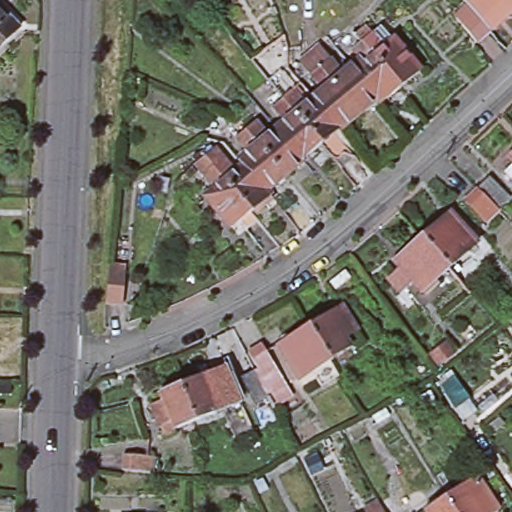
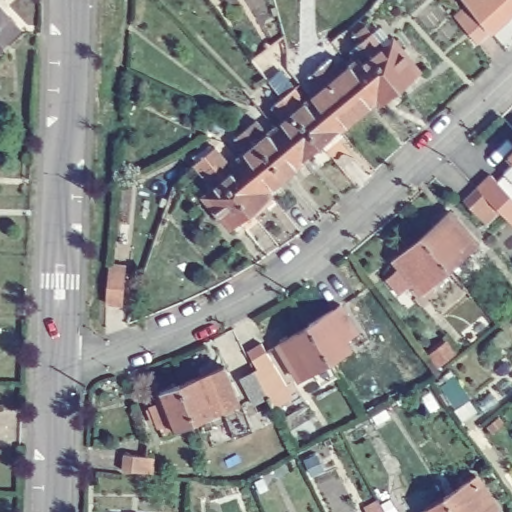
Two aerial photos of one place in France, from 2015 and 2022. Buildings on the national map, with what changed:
unchanged [(458,8),(469,0),(512,0),(512,6),(492,22),(479,33),(458,8)]
unchanged [(0,39),(0,5),(17,24),(0,39)]
unchanged [(370,35),(382,49),(392,42),(418,74),(397,91),(360,43),(370,35)]
unchanged [(361,66),(349,51),(360,43),(397,91),(380,106),(375,100),(353,73),(361,66)]
unchanged [(375,100),(337,131),(311,98),(320,91),(307,76),(327,60),(340,74),(348,69),(352,74),(353,73),(375,100)]
unchanged [(290,90),(301,105),(311,98),(337,131),(318,147),(278,98),(290,90)]
unchanged [(281,120),(270,106),(278,98),(318,147),(300,162),(272,128),(281,120)]
unchanged [(300,162),(281,178),(242,128),(252,120),(265,134),(272,128),(300,162)]
unchanged [(281,178),(264,191),(268,197),(267,197),(263,192),(240,165),(235,159),(244,152),(232,136),(242,128),(281,178)]
unchanged [(507,154),(512,149),(512,159),(507,154)]
unchanged [(238,230),(234,225),(229,229),(202,196),(212,189),(200,174),(192,164),(202,156),(210,165),(220,157),(232,172),(240,165),(263,192),(267,197),(248,213),(256,222),(244,231),(241,228),(238,230)]
unchanged [(505,169),(512,162),(512,176),(505,169)]
unchanged [(464,201),(476,190),(487,178),(509,200),(497,210),(496,211),(495,210),(485,221),(464,201)]
unchanged [(451,268),(423,235),(448,213),(470,237),(477,245),(466,255),(451,268)]
unchanged [(432,284),(425,277),(415,286),(393,261),(423,235),(451,268),(432,284)]
unchanged [(125,258),(123,297),(106,295),(110,256),(125,258)]
unchanged [(320,381),(311,367),(310,368),(298,375),(292,366),(276,339),(307,320),(338,301),(355,328),(343,335),(348,345),(330,356),(339,370),(320,381)]
unchanged [(270,406),(265,396),(263,393),(249,400),(235,375),(250,368),(250,369),(253,368),(245,353),(260,344),(284,387),(289,395),(270,406)]
unchanged [(206,367),(221,406),(178,422),(163,383),(206,367)]
unchanged [(158,429),(155,422),(142,426),(134,404),(146,400),(142,391),(163,383),(178,422),(158,429)]
unchanged [(125,450),(156,453),(155,469),(125,466),(125,450)]
unchanged [(474,479),(491,505),(481,512),(451,512),(437,490),(455,479),(468,471),(474,479)]
unchanged [(421,512),(423,511),(417,502),(437,490),(451,512),(421,512)]
unchanged [(364,512),(361,506),(375,499),(382,512),(364,512)]

